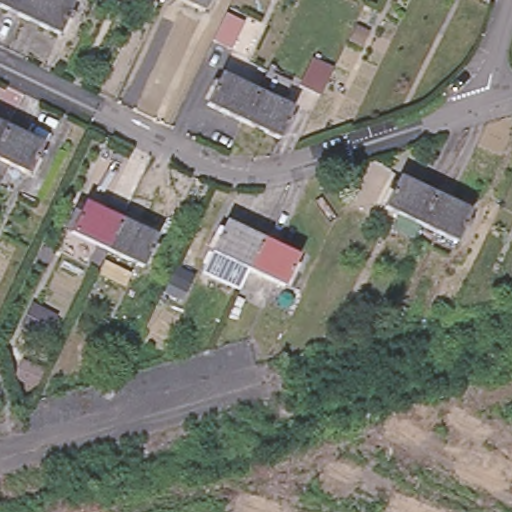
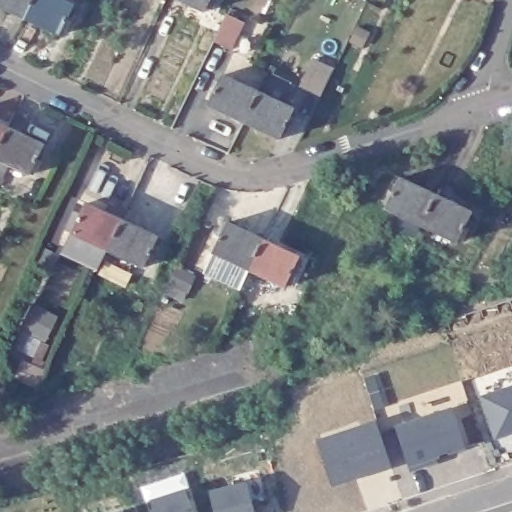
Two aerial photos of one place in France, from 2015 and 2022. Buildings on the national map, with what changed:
unchanged [(0,12),(0,0),(33,0),(22,22),(0,12)]
unchanged [(33,0),(53,0),(72,9),(59,38),(22,22),(33,0)]
unchanged [(202,11),(180,0),(211,0),(205,12),(202,11)]
unchanged [(227,16),(245,26),(232,53),(225,49),(213,43),(221,27),(226,16),(227,16)]
unchanged [(314,60),(335,70),(322,97),(301,87),(314,60)]
unchanged [(245,124),(235,119),(219,111),(209,107),(215,91),(222,76),(230,79),(260,94),(294,110),(280,140),(245,124)]
unchanged [(0,123),(8,127),(0,145),(0,123)]
unchanged [(44,144),(30,174),(0,160),(0,145),(8,127),(44,144)]
unchanged [(472,213),(459,244),(422,226),(407,220),(385,210),(397,187),(400,179),(408,183),(435,196),(454,204),(472,213)]
unchanged [(109,249),(72,232),(86,203),(122,220),(109,249)]
unchanged [(157,236),(144,266),(109,249),(122,220),(157,236)]
unchanged [(250,270),(245,267),(214,254),(228,223),(237,227),(254,234),(263,238),(299,255),(299,256),(286,286),(260,274),(250,270)]
new [(180,267),(197,275),(185,300),(168,292),(180,267)]
new [(512,387),(512,434),(494,440),(480,397),(512,387)]
demolished [(266,403),(280,399),(292,395),(299,421),(285,425),(270,429),(266,403)]
new [(454,408),(466,446),(437,455),(439,460),(410,469),(397,427),(454,408)]
new [(375,422),(391,469),(332,486),(319,442),(375,422)]
new [(255,512),(216,512),(210,490),(248,481),(255,512)]
new [(187,488),(194,512),(155,512),(151,500),(187,488)]
new [(123,512),(120,512),(123,511),(123,512)]

